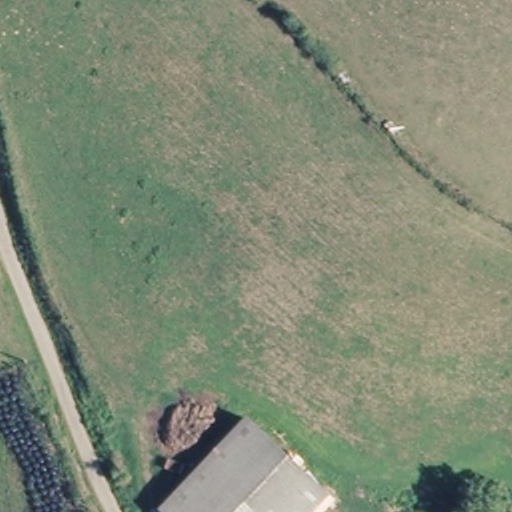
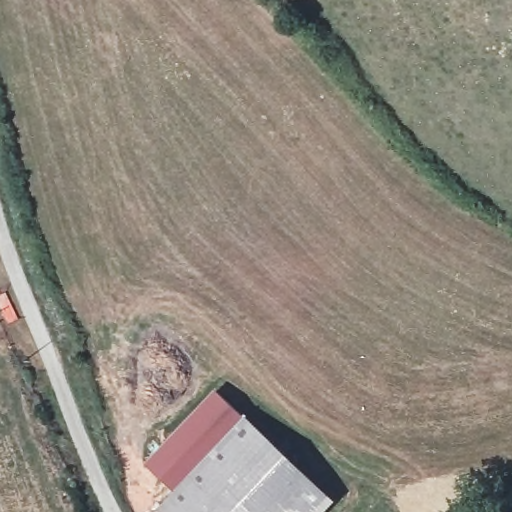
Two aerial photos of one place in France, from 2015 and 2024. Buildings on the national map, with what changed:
new [(146,463),(215,391),(245,421),(178,493),(146,463)]
unchanged [(161,511),(245,421),(328,497),(314,512),(163,512),(161,511)]

